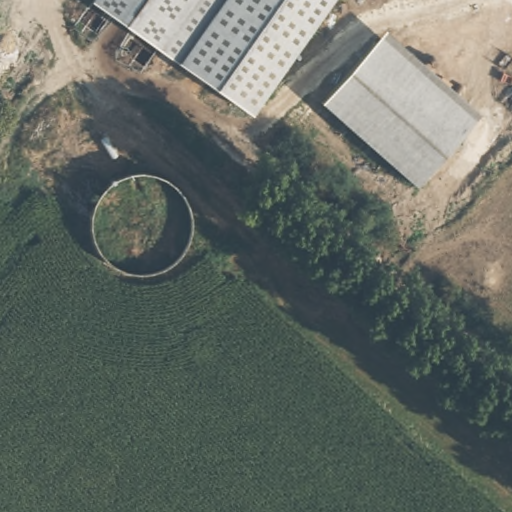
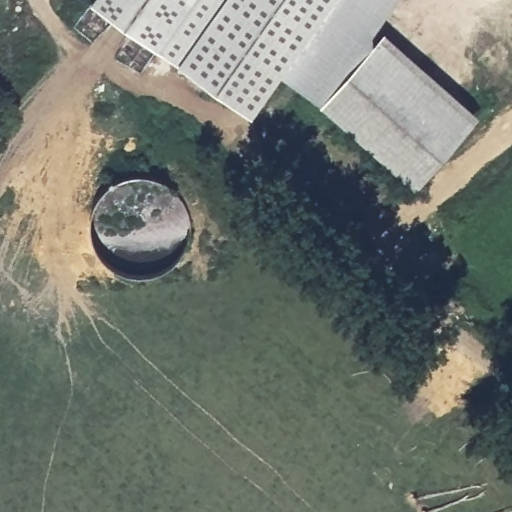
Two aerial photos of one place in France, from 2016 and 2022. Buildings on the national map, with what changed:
unchanged [(189,59),(185,57),(178,67),(98,0),(228,0),(189,59)]
unchanged [(252,118),(178,67),(185,57),(189,59),(228,0),(335,0),(252,118)]
new [(372,42),(318,104),(282,76),(335,0),(396,0),(372,33),(372,42)]
unchanged [(481,118),(416,190),(318,104),(384,29),(481,118)]

